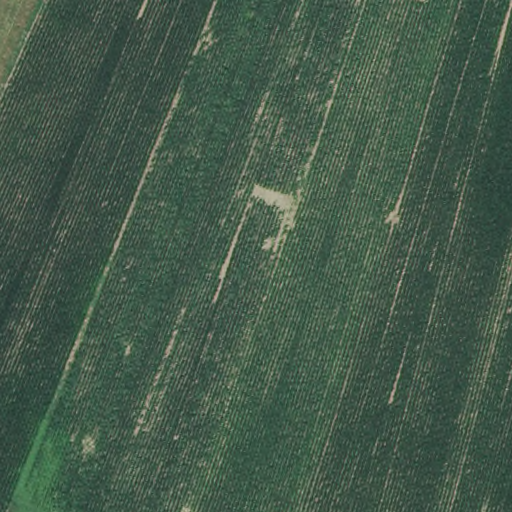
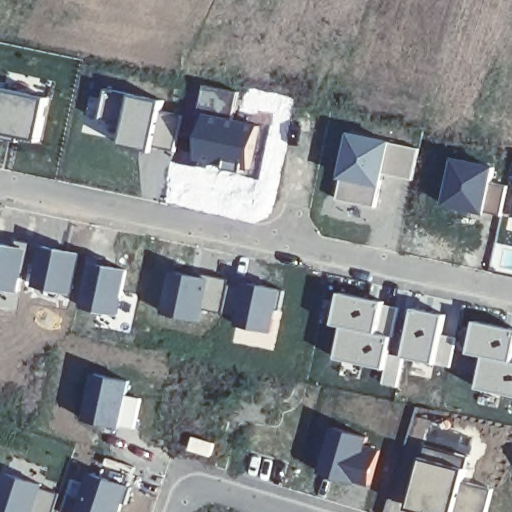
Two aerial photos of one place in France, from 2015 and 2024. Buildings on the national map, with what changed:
new [(198,109),(203,83),(238,90),(234,116),(267,124),(257,177),(195,161),(205,110),(198,109)]
new [(89,94),(104,97),(107,86),(132,92),(118,140),(82,128),(89,94)]
new [(50,97),(39,141),(0,135),(0,88),(50,97)]
new [(175,151),(156,146),(155,152),(118,140),(132,92),(165,100),(163,109),(185,115),(175,151)]
new [(172,160),(195,165),(195,161),(257,177),(267,124),(290,129),(277,193),(272,212),(268,218),(253,223),(165,201),(172,160)]
new [(350,130),(422,147),(413,181),(385,174),(376,207),(337,199),(350,130)]
new [(455,155),(497,165),(492,181),(507,185),(500,216),(486,212),(485,215),(442,204),(455,155)]
new [(28,247),(17,292),(0,288),(0,242),(28,247)]
new [(42,245),(82,253),(72,294),(33,284),(42,245)]
new [(90,261),(127,269),(117,313),(82,304),(90,261)]
new [(211,275),(232,279),(223,313),(204,308),(200,321),(163,312),(175,268),(211,275)]
new [(243,281),(283,288),(273,334),(235,326),(243,281)]
new [(341,291),(402,305),(395,336),(343,326),(333,324),(341,291)]
new [(414,306),(449,313),(444,332),(458,336),(452,368),(405,356),(414,306)]
new [(512,328),(512,360),(485,355),(470,352),(477,319),(512,328)]
new [(343,326),(395,336),(390,353),(405,356),(397,387),(383,384),(387,369),(337,357),(343,326)]
new [(512,360),(512,396),(478,387),(485,355),(512,360)]
new [(95,372),(130,380),(120,427),(83,419),(95,372)]
new [(474,437),(470,454),(467,469),(465,478),(455,512),(419,512),(407,508),(425,441),(430,423),(474,437)]
new [(325,450),(321,449),(327,425),(370,435),(367,443),(381,448),(370,486),(320,470),(325,450)]
new [(0,512),(0,484),(4,469),(43,486),(60,492),(53,512),(0,512)]
new [(82,481),(85,471),(130,484),(120,512),(71,512),(75,498),(67,495),(71,478),(82,481)]
new [(495,488),(488,512),(455,512),(465,478),(495,488)]

